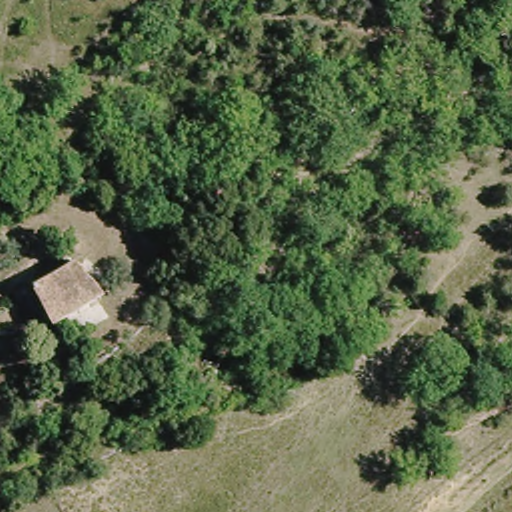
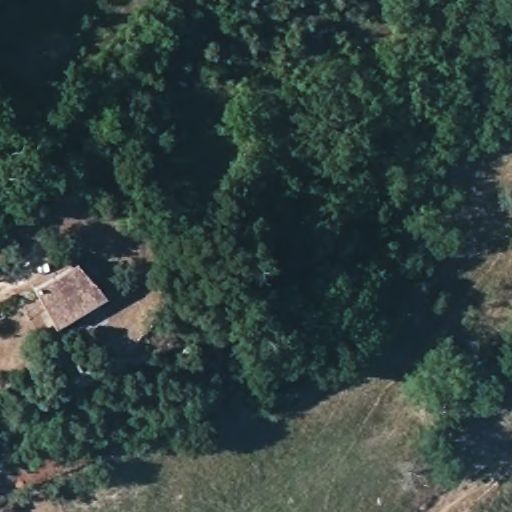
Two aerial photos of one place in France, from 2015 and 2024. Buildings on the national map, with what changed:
unchanged [(65,261),(96,285),(63,324),(32,297),(62,266),(65,261)]

